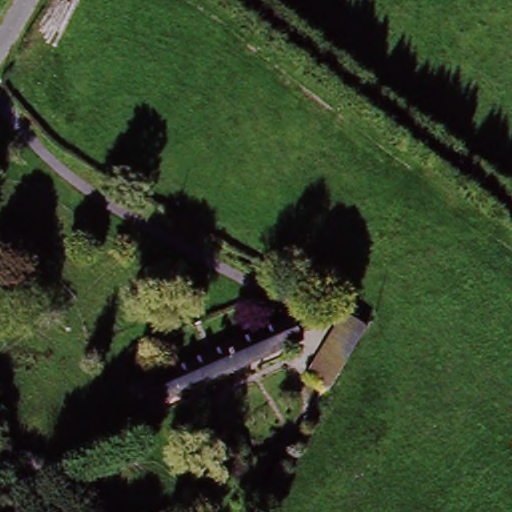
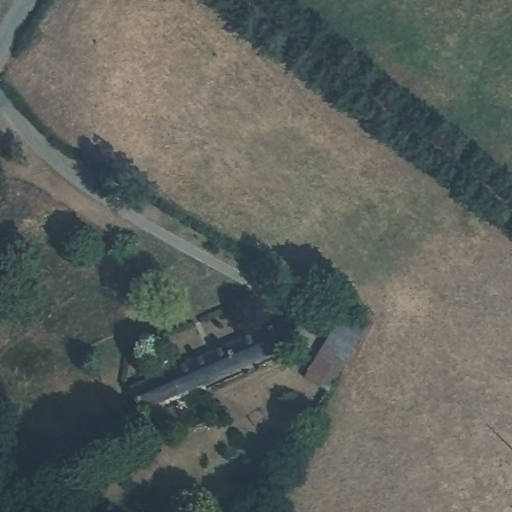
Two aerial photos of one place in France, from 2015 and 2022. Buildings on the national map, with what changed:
unchanged [(329,395),(315,387),(305,381),(340,317),(349,323),(363,330),(329,395)]
unchanged [(228,353),(287,328),(295,346),(250,366),(133,417),(125,397),(228,353)]

